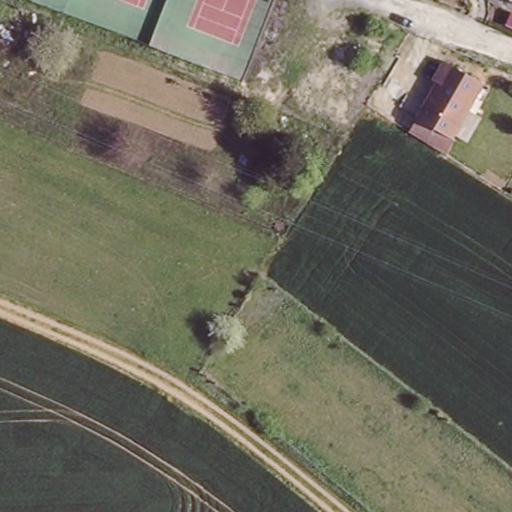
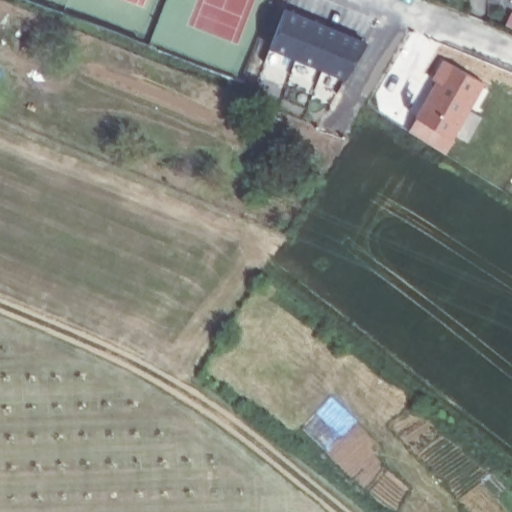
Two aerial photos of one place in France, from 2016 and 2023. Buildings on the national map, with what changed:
new [(345,80),(271,49),(288,10),(367,44),(345,80)]
unchanged [(435,80),(431,78),(442,59),(481,83),(447,137),(449,139),(441,151),(405,129),(435,80)]

